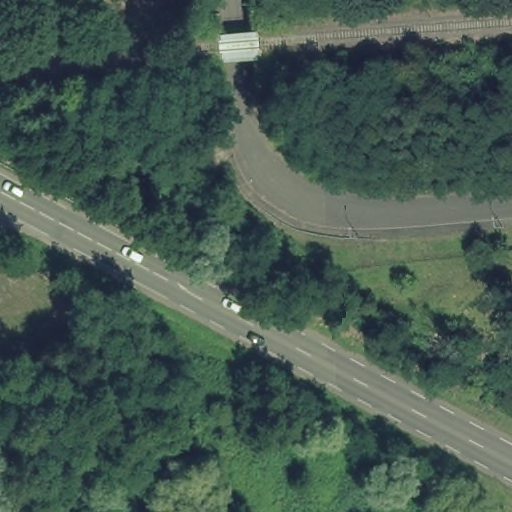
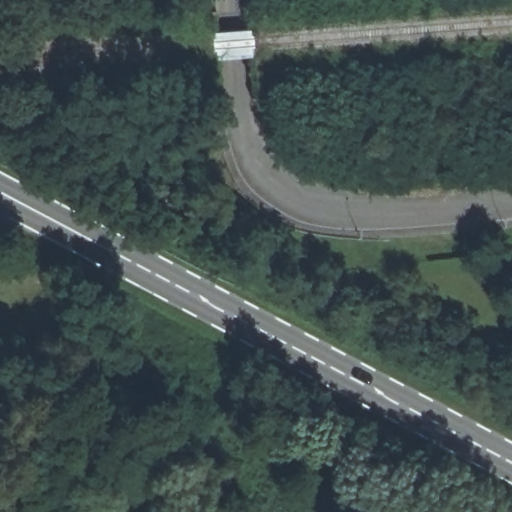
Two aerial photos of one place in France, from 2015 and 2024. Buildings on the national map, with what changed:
[]

